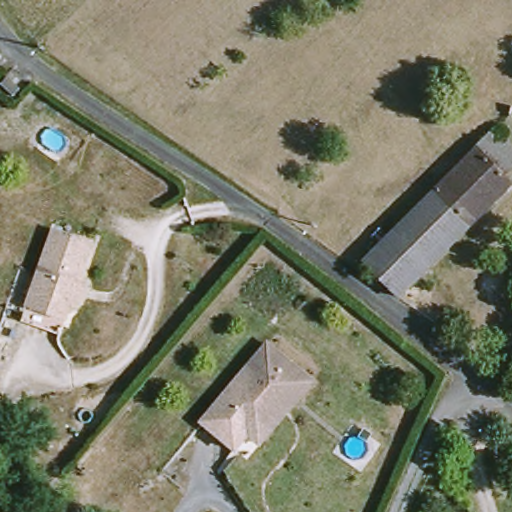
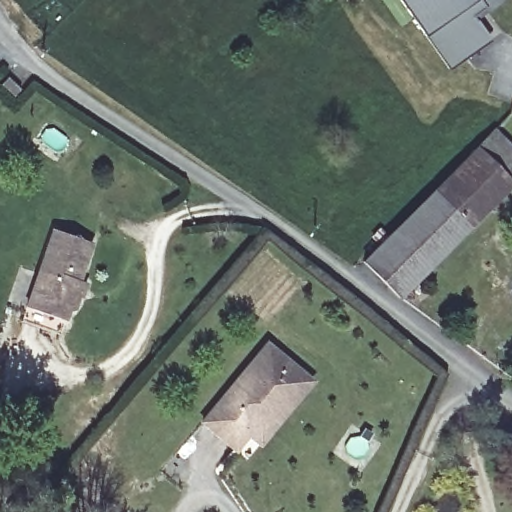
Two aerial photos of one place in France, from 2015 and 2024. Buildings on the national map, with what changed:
new [(402,0),(483,0),(486,4),(473,13),(490,39),(451,67),(402,0)]
unchanged [(512,106),(512,115),(508,112),(512,106)]
unchanged [(377,281),(380,277),(361,258),(376,244),(369,237),(378,230),(385,236),(475,149),(512,186),(414,280),(427,294),(413,305),(400,293),(396,297),(377,281)]
unchanged [(29,302),(56,225),(94,239),(81,276),(85,277),(81,291),(76,303),(70,305),(66,315),(61,330),(24,316),(29,302)]
unchanged [(298,380),(246,443),(213,416),(265,353),(298,380)]
unchanged [(298,380),(309,390),(257,452),(246,443),(298,380)]

